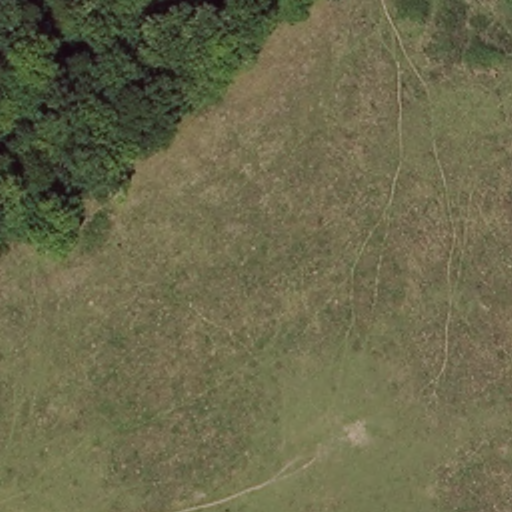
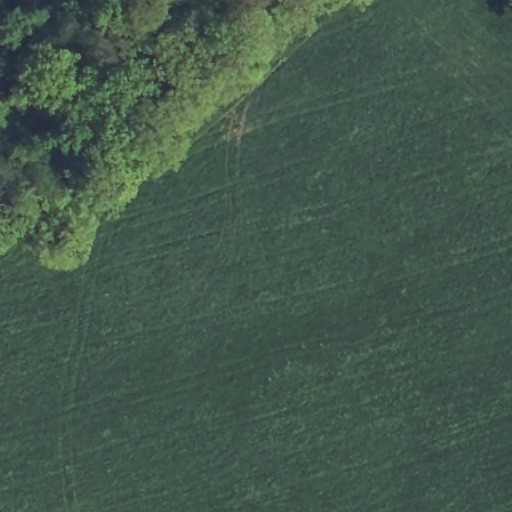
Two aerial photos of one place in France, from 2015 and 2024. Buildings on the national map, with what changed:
[]

